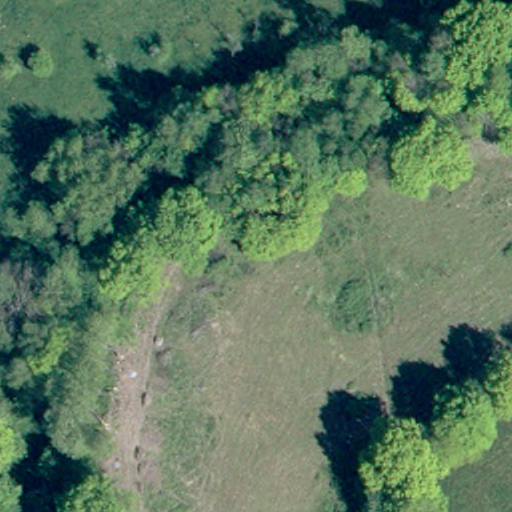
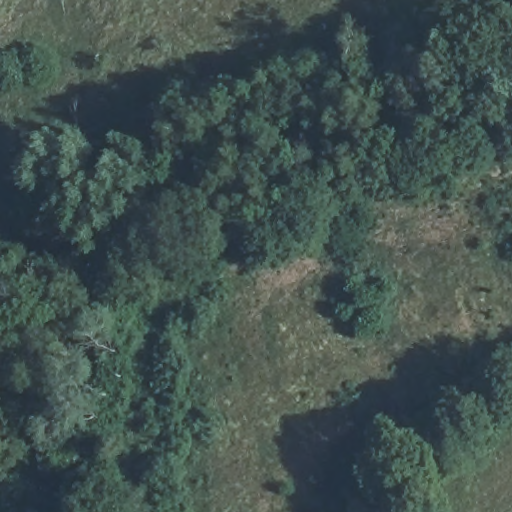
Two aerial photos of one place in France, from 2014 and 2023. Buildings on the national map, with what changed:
unchanged [(0,385),(7,385),(7,395),(0,395),(0,385)]

